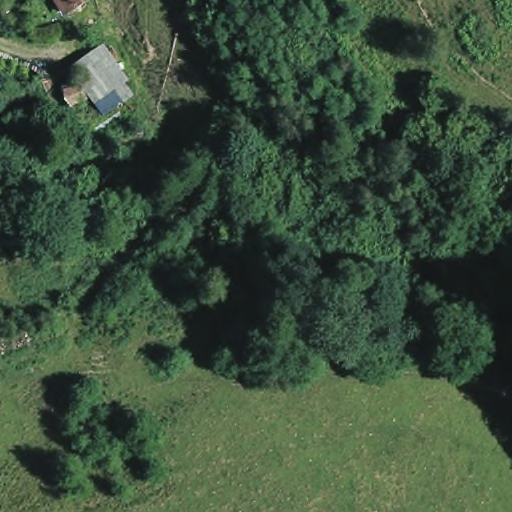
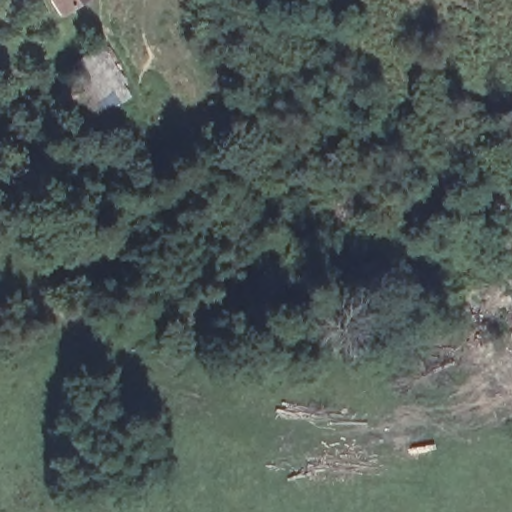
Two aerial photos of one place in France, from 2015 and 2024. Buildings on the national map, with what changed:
unchanged [(65,0),(89,0),(74,12),(65,0)]
unchanged [(97,51),(125,84),(70,117),(56,84),(97,51)]

